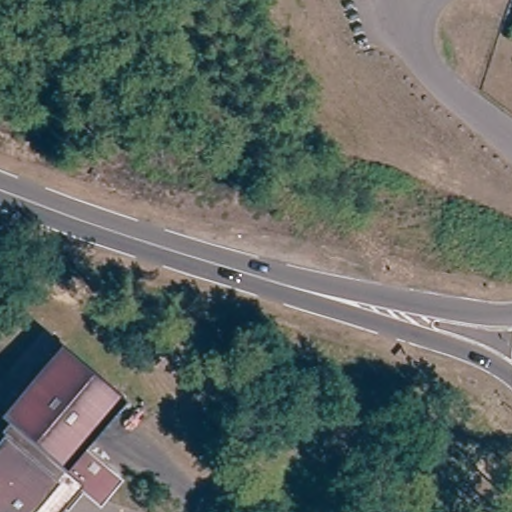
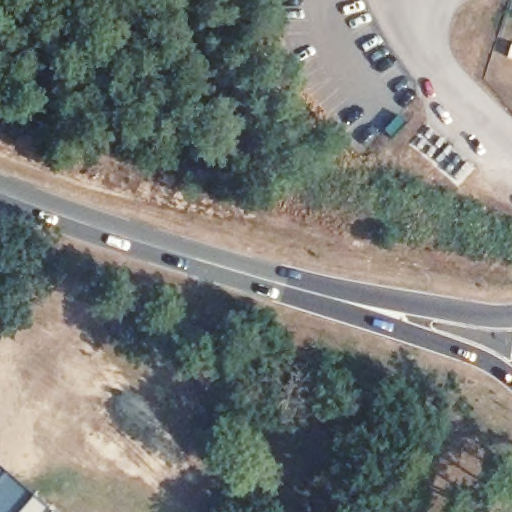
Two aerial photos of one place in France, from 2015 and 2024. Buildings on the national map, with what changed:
demolished [(20,389),(13,382),(43,344),(51,351),(59,340),(121,391),(79,445),(62,467),(81,480),(57,512),(0,512),(0,415),(20,389)]
demolished [(116,474),(100,494),(81,480),(62,467),(79,445),(116,474)]
new [(34,499),(50,512),(22,512),(20,511),(20,512),(0,512),(0,470),(34,499)]
new [(22,512),(20,512),(20,511),(22,512)]

